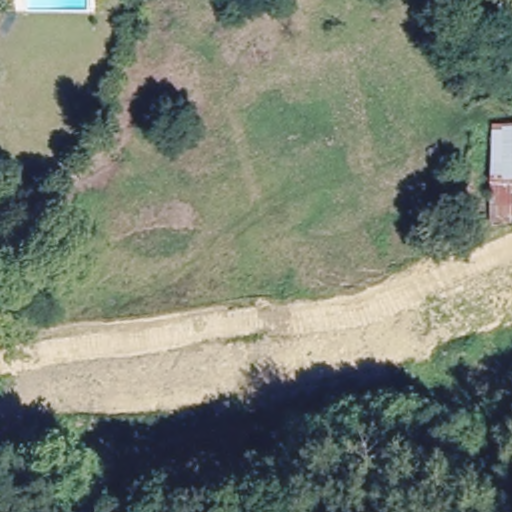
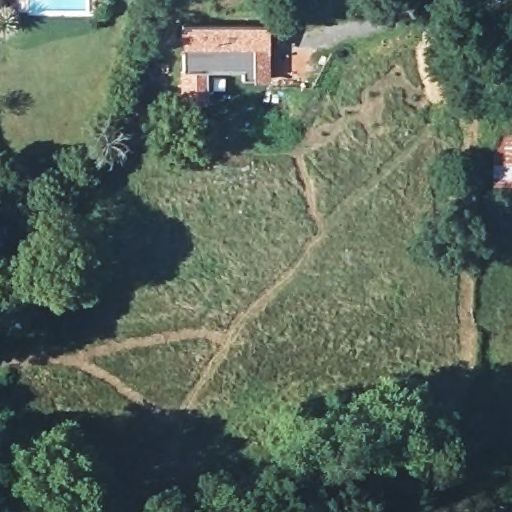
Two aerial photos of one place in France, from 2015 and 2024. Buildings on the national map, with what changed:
new [(267,23),(268,82),(258,82),(252,77),(243,77),(242,71),(203,71),(203,107),(179,108),(178,71),(182,71),(180,26),(267,23)]
unchanged [(488,120),(512,121),(512,221),(487,221),(488,120)]

